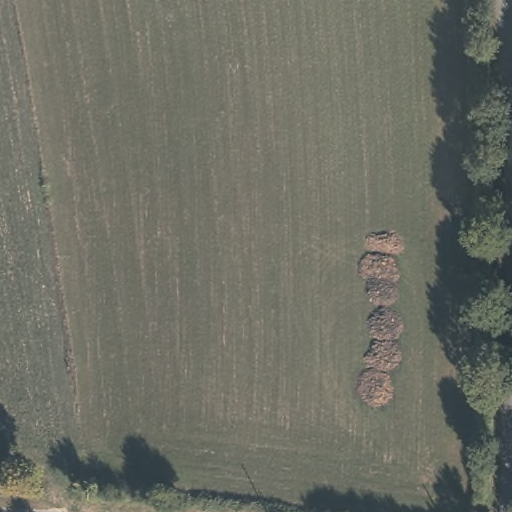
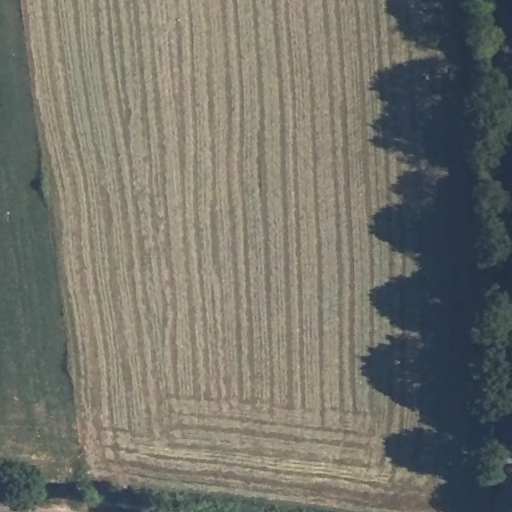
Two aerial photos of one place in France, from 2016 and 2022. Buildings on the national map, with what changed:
[]

